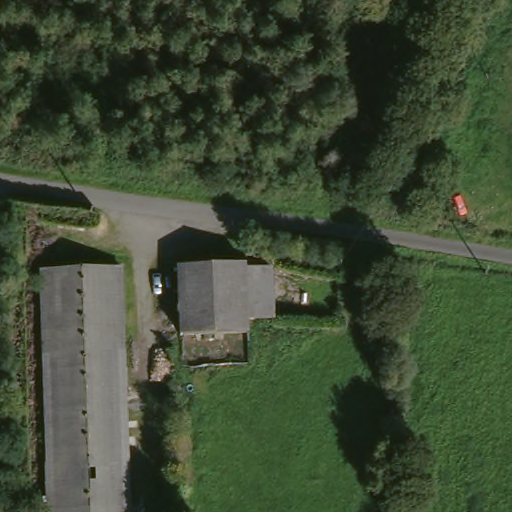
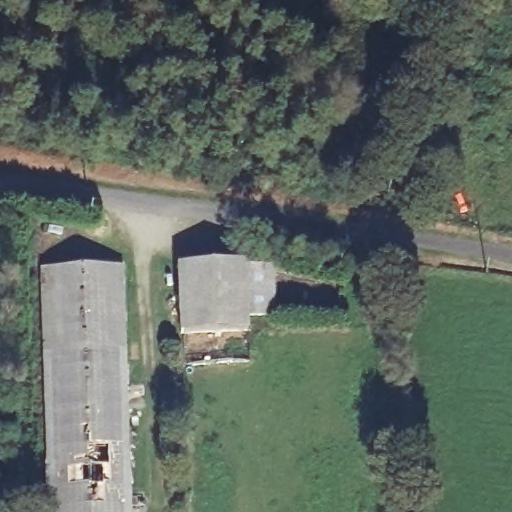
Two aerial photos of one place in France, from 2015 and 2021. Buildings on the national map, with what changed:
unchanged [(249,330),(249,332),(183,334),(181,266),(247,263),(247,268),(249,319),(249,330)]
unchanged [(129,344),(132,467),(133,512),(52,512),(49,402),(45,270),(127,267),(129,344)]
unchanged [(274,268),(276,319),(249,319),(247,268),(274,268)]

